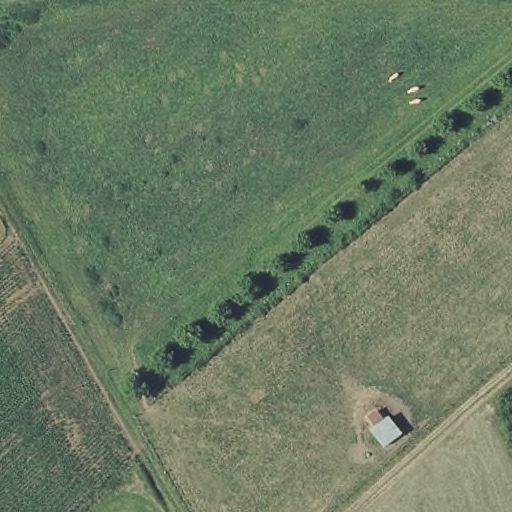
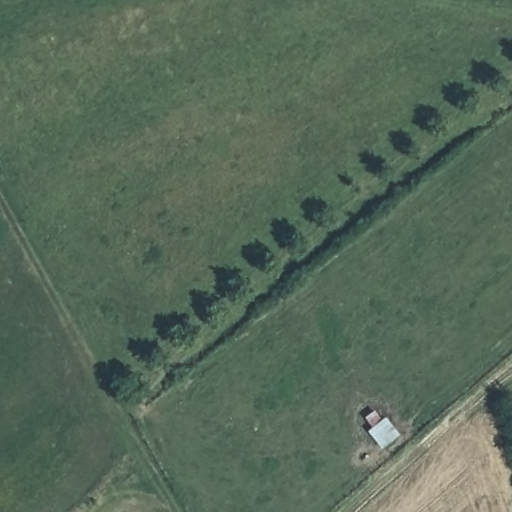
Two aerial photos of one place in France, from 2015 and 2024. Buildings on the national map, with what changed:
unchanged [(373,431),(392,415),(407,434),(389,450),(373,431)]

